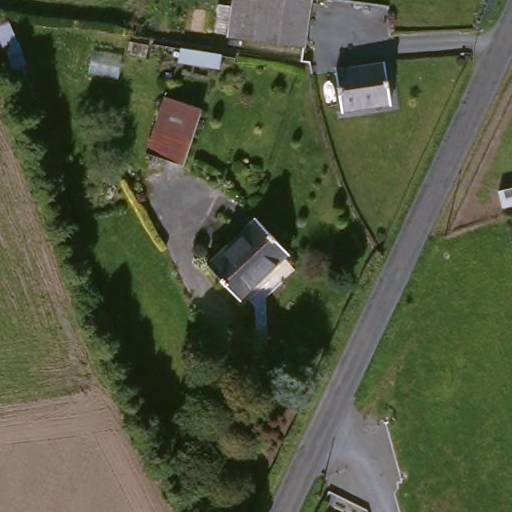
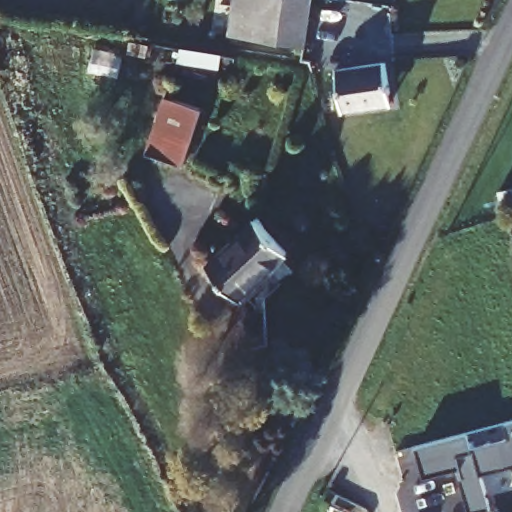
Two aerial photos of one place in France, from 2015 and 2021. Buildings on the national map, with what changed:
unchanged [(233,33),(237,0),(312,0),(305,45),(233,33)]
unchanged [(348,111),(344,67),(389,60),(394,105),(348,111)]
unchanged [(190,156),(157,146),(170,88),(206,96),(190,156)]
new [(512,211),(500,215),(496,199),(512,195),(512,211)]
unchanged [(293,250),(244,296),(213,263),(262,217),(293,250)]
new [(472,450),(509,439),(505,425),(512,422),(512,468),(483,477),(491,512),(489,512),(468,512),(459,480),(462,479),(460,471),(424,481),(415,450),(468,435),(472,450)]

